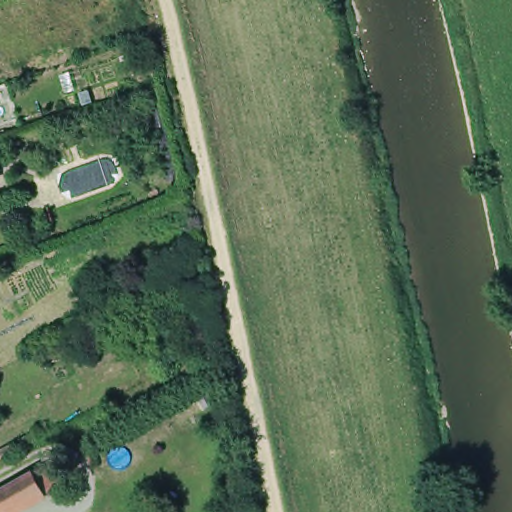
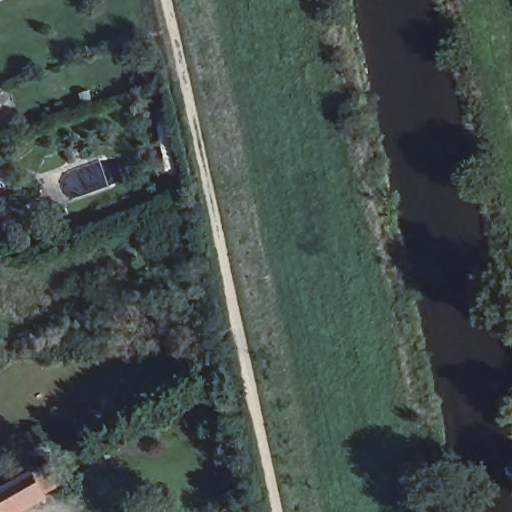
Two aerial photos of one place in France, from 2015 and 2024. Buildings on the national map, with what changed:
unchanged [(27,469),(37,487),(0,508),(0,484),(27,469)]

